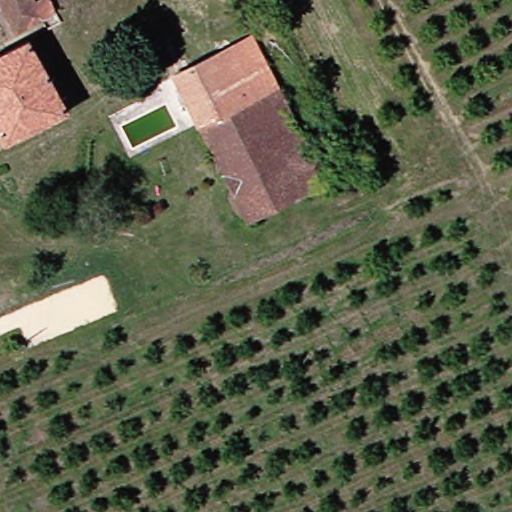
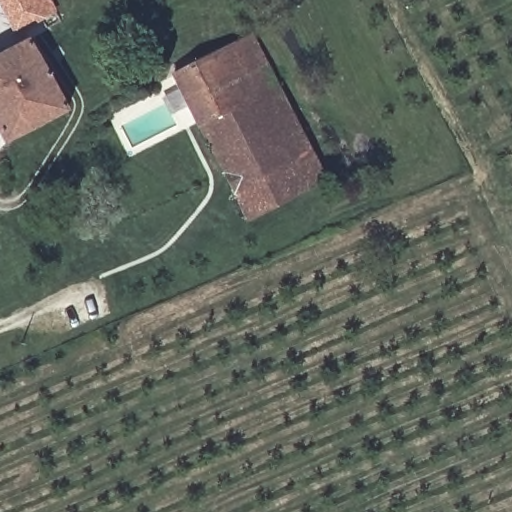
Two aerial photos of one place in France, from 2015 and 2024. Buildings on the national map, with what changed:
unchanged [(36,0),(37,0),(51,0),(56,11),(40,23),(15,35),(0,6),(0,0),(36,0)]
unchanged [(171,78),(251,36),(315,154),(233,195),(171,78)]
unchanged [(6,143),(0,131),(0,53),(28,38),(66,111),(6,143)]
unchanged [(330,181),(247,222),(233,195),(315,154),(330,181)]

